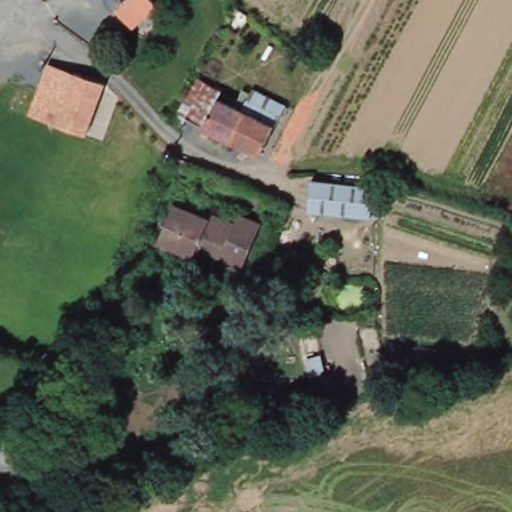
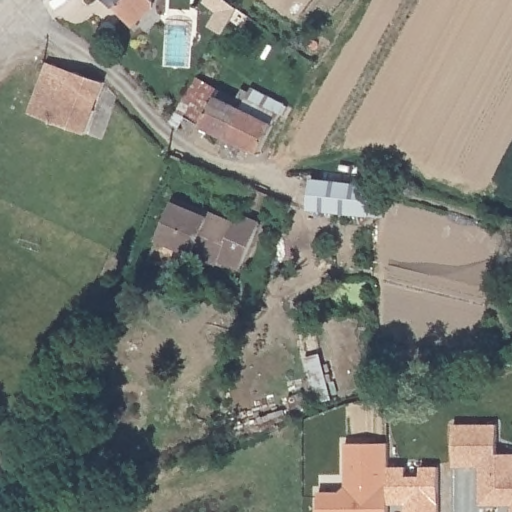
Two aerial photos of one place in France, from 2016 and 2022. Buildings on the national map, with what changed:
unchanged [(153,11),(135,29),(107,0),(151,0),(154,3),(153,11)]
unchanged [(77,77),(63,114),(52,110),(36,104),(54,63),(77,77)]
unchanged [(173,125),(201,70),(211,75),(249,94),(257,98),(235,144),(191,122),(185,135),(180,130),(173,125)]
unchanged [(109,89),(107,93),(89,139),(47,124),(52,110),(63,114),(77,77),(109,89)]
unchanged [(260,92),(291,107),(266,159),(235,144),(257,98),(260,92)]
unchanged [(383,188),(381,224),(319,216),(321,182),(383,188)]
unchanged [(215,223),(217,216),(240,226),(245,218),(268,228),(251,268),(229,259),(225,267),(168,243),(182,209),(215,223)]
new [(511,505),(478,504),(478,467),(453,467),(454,424),(496,424),(496,453),(512,454),(512,512),(511,512),(511,505)]
new [(320,491),(341,491),(345,486),(346,443),(387,444),(387,512),(320,512),(320,491)]

